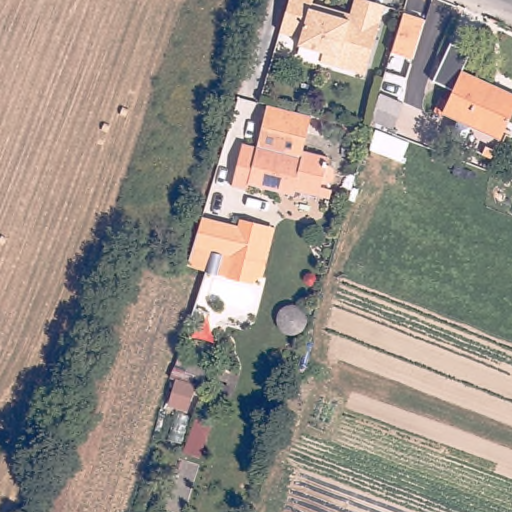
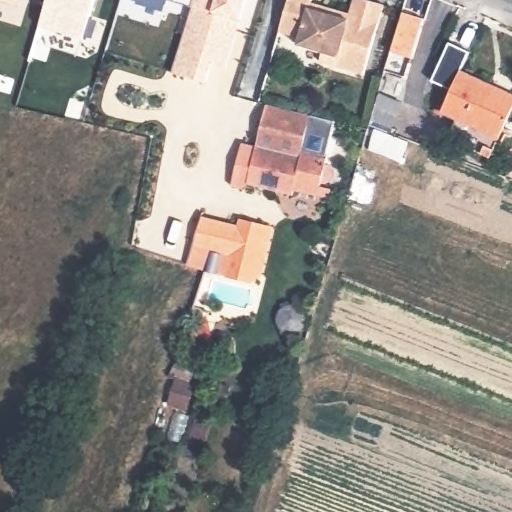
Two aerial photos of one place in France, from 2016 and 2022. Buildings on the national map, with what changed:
new [(0,2),(0,0),(20,0),(18,7),(0,2)]
new [(66,34),(65,38),(38,31),(47,0),(95,0),(83,39),(66,34)]
new [(138,4),(128,0),(167,0),(164,11),(138,4)]
new [(204,83),(171,73),(191,7),(167,0),(246,0),(225,68),(210,64),(204,83)]
unchanged [(322,54),(297,46),(299,39),(277,33),(287,0),(311,0),(309,4),(348,15),(353,0),(362,0),(382,6),(362,75),(320,63),(322,54)]
unchanged [(392,41),(401,11),(421,17),(410,57),(390,51),(392,41)]
new [(451,91),(431,82),(449,42),(470,51),(460,72),(451,91)]
unchanged [(442,111),(460,72),(512,95),(512,112),(500,138),(470,124),(442,111)]
unchanged [(369,125),(378,93),(403,102),(395,134),(369,125)]
unchanged [(311,116),(302,151),(328,157),(326,165),(328,166),(332,169),(333,174),(333,177),(332,179),(329,183),(324,185),(321,184),(319,195),(295,189),(294,195),(249,184),(247,191),(232,187),(243,138),(258,142),(266,106),(311,116)]
unchanged [(241,215),(266,221),(251,280),(227,274),(231,255),(238,226),(241,215)]
unchanged [(189,245),(195,227),(198,216),(238,226),(231,255),(189,245)]

